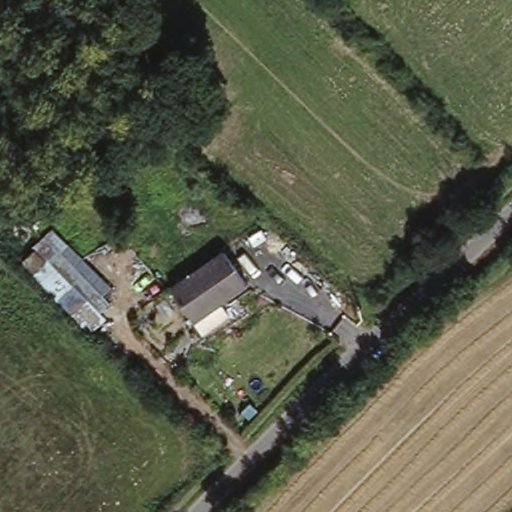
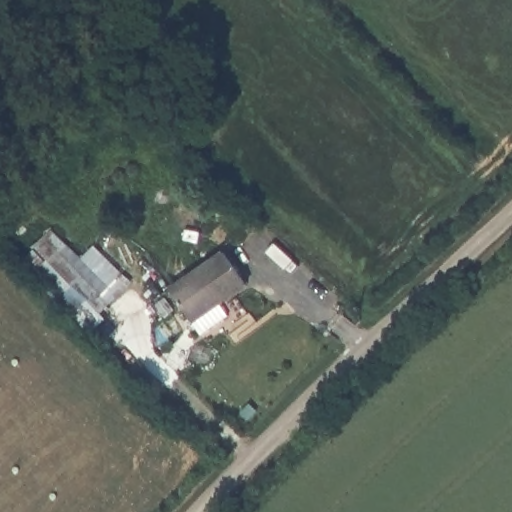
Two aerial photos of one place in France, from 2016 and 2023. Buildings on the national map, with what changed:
unchanged [(91,333),(19,270),(36,249),(106,317),(91,333)]
unchanged [(254,285),(240,295),(250,313),(209,340),(175,289),(226,252),(254,285)]

